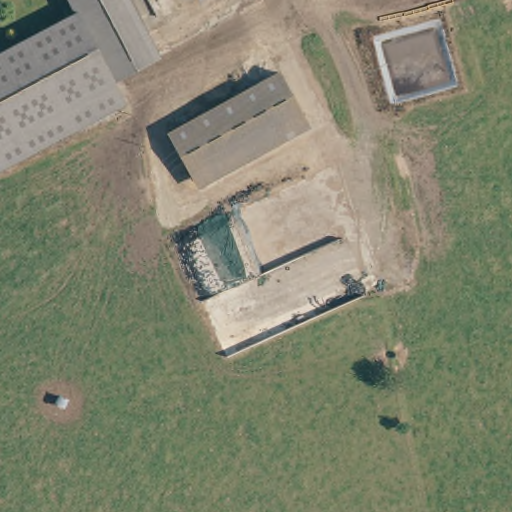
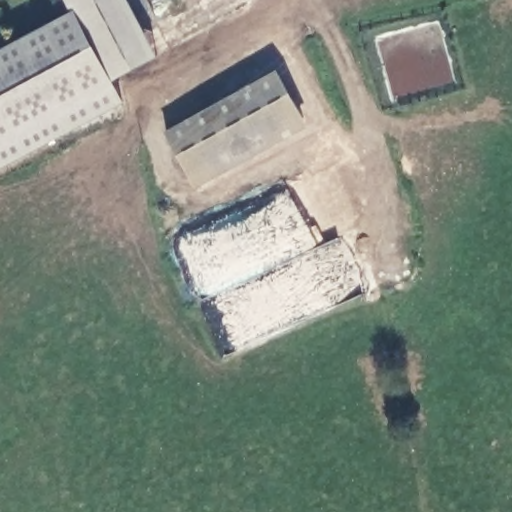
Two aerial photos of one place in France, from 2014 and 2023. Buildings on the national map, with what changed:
unchanged [(68,0),(127,0),(161,58),(116,85),(127,105),(0,174),(0,58),(77,15),(68,0)]
unchanged [(172,135),(280,75),(306,118),(198,181),(172,135)]

